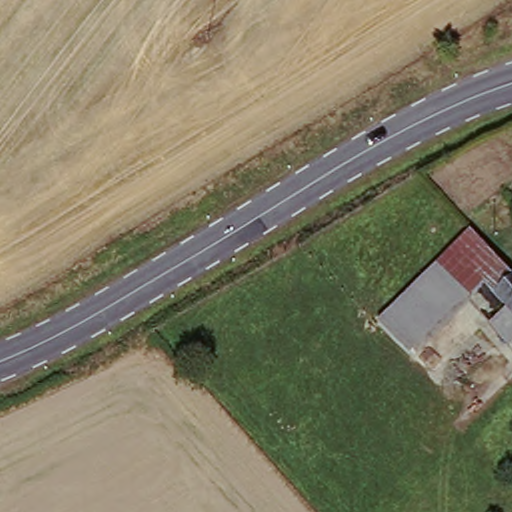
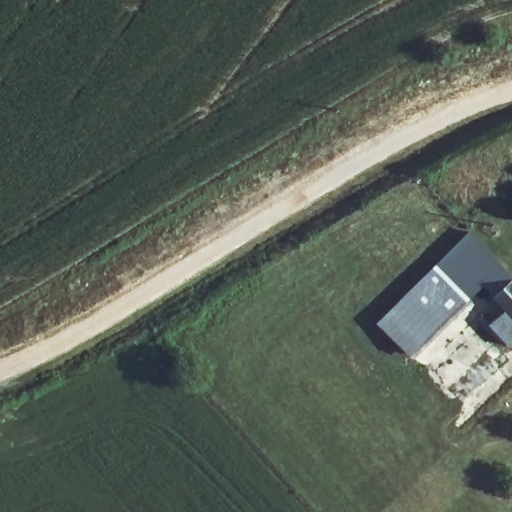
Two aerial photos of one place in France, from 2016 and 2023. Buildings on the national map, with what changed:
unchanged [(472,236),(512,276),(512,286),(498,301),(485,288),(452,256),(472,236)]
unchanged [(485,288),(414,361),(381,327),(452,256),(485,288)]
unchanged [(497,327),(511,313),(498,301),(512,286),(512,343),(497,327)]

